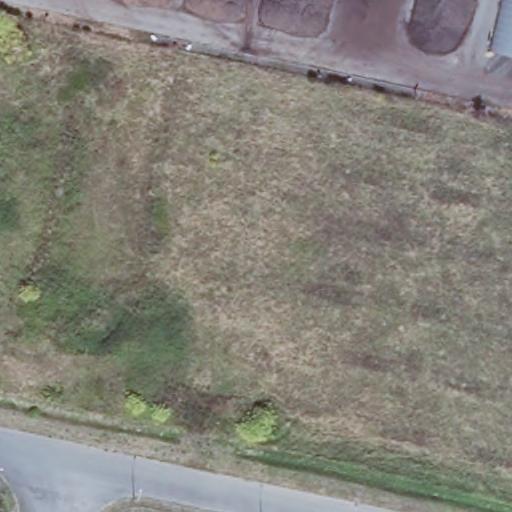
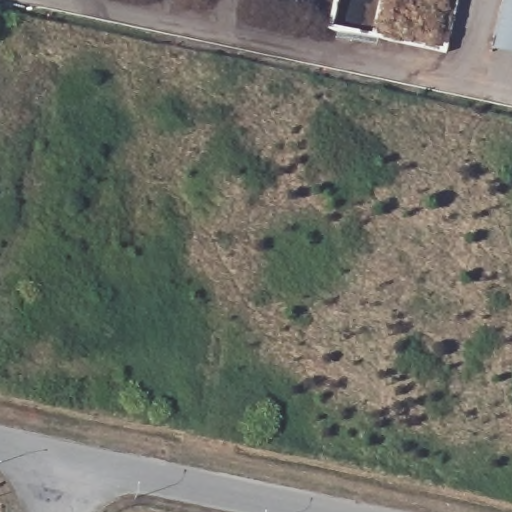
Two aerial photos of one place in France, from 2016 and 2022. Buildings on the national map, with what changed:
unchanged [(512,0),(512,55),(498,51),(511,0),(512,0)]

